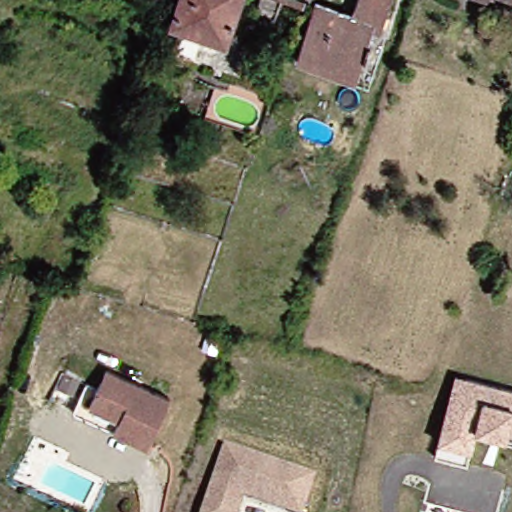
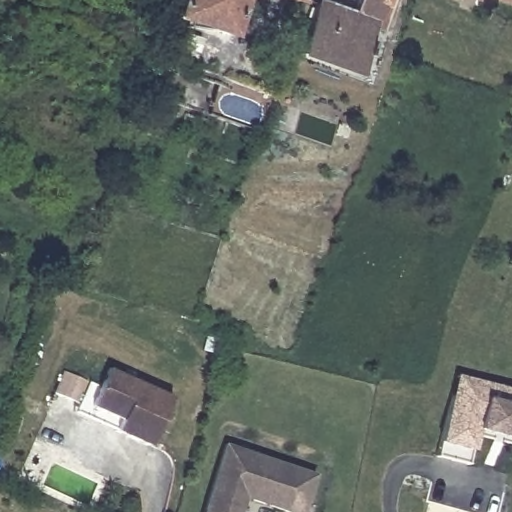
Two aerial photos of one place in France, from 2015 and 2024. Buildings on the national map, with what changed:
unchanged [(199,29),(194,52),(168,43),(174,22),(180,0),(243,0),(228,37),(199,29)]
unchanged [(320,0),(322,0),(357,12),(361,0),(394,0),(386,22),(395,27),(380,64),(307,38),(320,0)]
unchanged [(494,0),(512,0),(512,6),(494,0)]
unchanged [(375,77),(302,52),(307,38),(380,64),(375,77)]
unchanged [(89,408),(97,389),(105,371),(170,399),(156,429),(148,448),(114,433),(84,420),(89,408)]
unchanged [(497,436),(482,432),(473,467),(441,458),(457,397),(463,377),(472,380),(512,390),(512,438),(512,440),(497,436)]
unchanged [(320,475),(308,512),(290,512),(249,499),(244,512),(208,512),(228,446),(320,475)]

